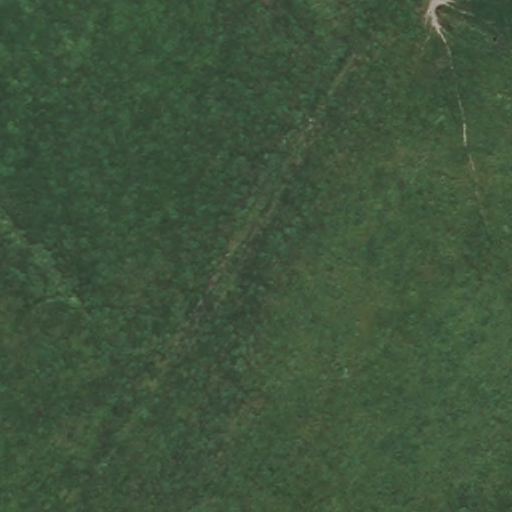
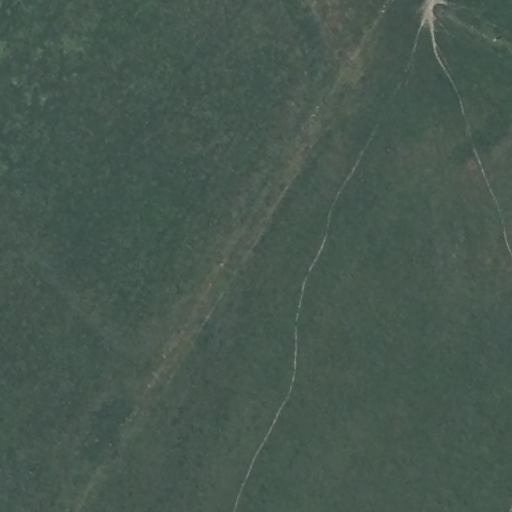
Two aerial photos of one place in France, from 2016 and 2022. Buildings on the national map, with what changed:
[]

